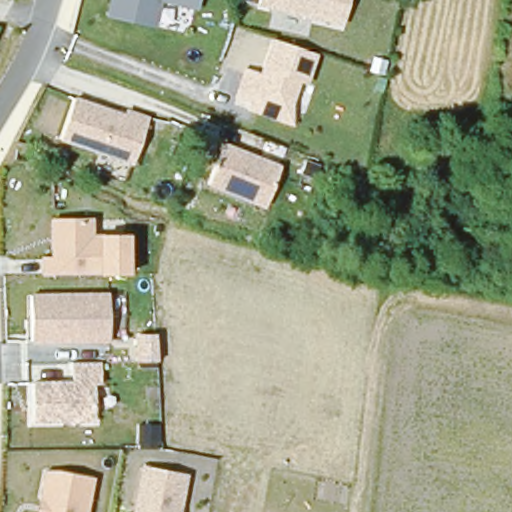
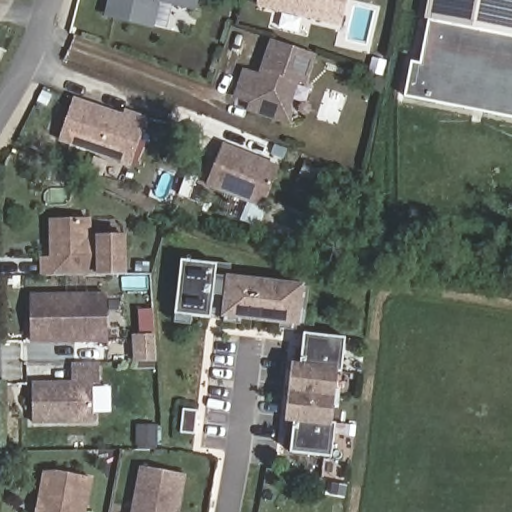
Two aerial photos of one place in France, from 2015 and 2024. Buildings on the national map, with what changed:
unchanged [(199,13),(161,5),(155,29),(106,18),(110,0),(202,0),(199,13)]
unchanged [(258,6),(260,0),(351,0),(345,28),(258,6)]
new [(420,64),(428,20),(425,19),(429,0),(484,0),(478,30),(512,36),(512,119),(404,97),(411,62),(420,64)]
new [(512,36),(478,30),(484,0),(512,0),(512,36)]
unchanged [(249,113),(251,102),(235,97),(245,68),(261,72),(272,41),(318,56),(308,86),(300,85),(293,105),(292,127),(249,113)]
unchanged [(134,165),(59,142),(75,98),(124,115),(127,109),(151,116),(134,165)]
unchanged [(262,210),(206,190),(224,143),(281,164),(262,210)]
unchanged [(131,274),(41,277),(40,256),(51,256),(49,219),(91,216),(94,235),(129,235),(131,274)]
new [(214,295),(211,318),(174,314),(181,260),(218,264),(217,276),(227,277),(225,296),(214,295)]
new [(305,283),(300,327),(222,317),(225,296),(227,277),(228,274),(305,283)]
unchanged [(110,340),(33,345),(31,293),(108,292),(110,340)]
new [(338,372),(336,397),(289,392),(293,361),(301,362),(304,333),(346,338),(342,372),(338,372)]
unchanged [(34,425),(33,382),(75,380),(75,362),(101,361),(103,385),(94,385),(95,423),(34,425)]
new [(333,423),(337,423),(332,458),(289,453),(293,422),(286,421),(289,392),(336,397),(333,423)]
unchanged [(132,512),(140,466),(187,474),(181,512),(132,512)]
unchanged [(96,478),(89,512),(35,512),(43,469),(96,478)]

